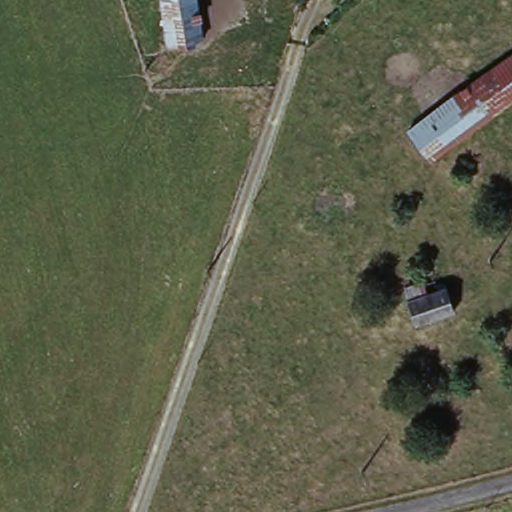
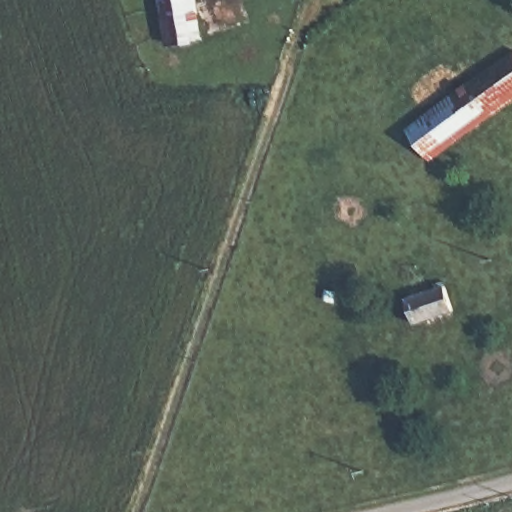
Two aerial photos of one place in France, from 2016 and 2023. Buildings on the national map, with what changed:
unchanged [(173,49),(164,0),(201,0),(207,42),(173,49)]
unchanged [(410,132),(499,68),(512,60),(512,105),(431,165),(410,132)]
unchanged [(440,280),(441,286),(448,284),(460,314),(422,328),(410,292),(440,280)]

